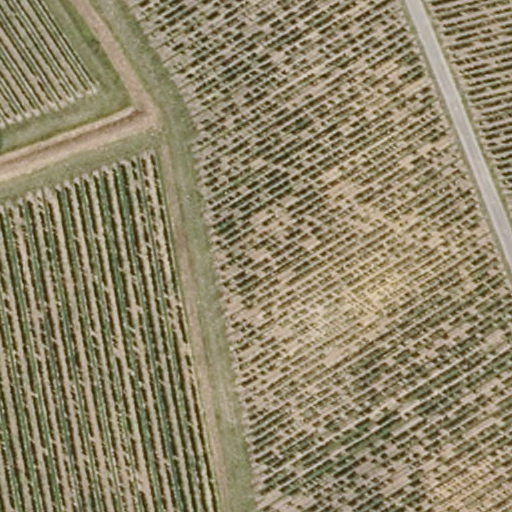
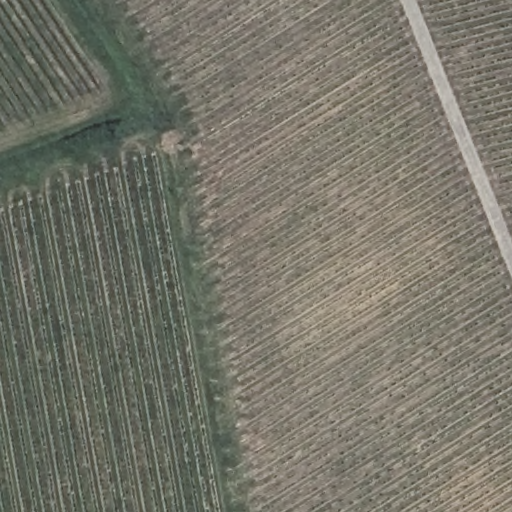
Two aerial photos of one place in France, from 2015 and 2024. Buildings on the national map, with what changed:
[]

